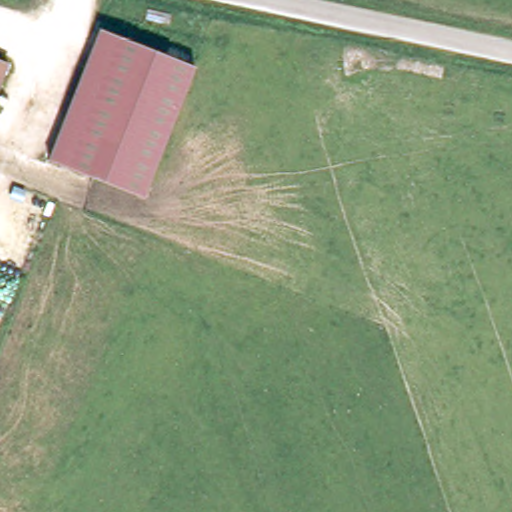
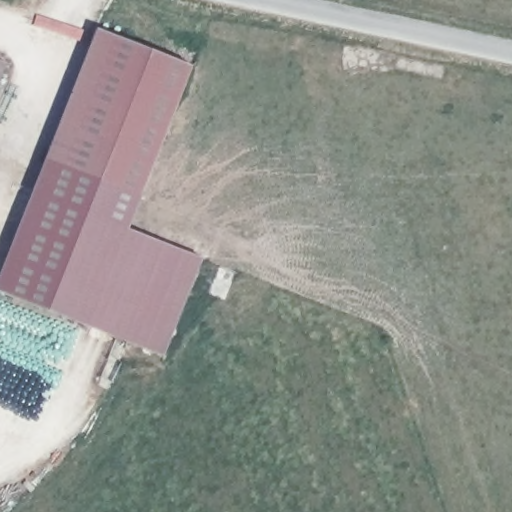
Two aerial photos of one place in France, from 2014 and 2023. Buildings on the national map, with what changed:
unchanged [(53,158),(102,26),(196,63),(146,195),(53,158)]
unchanged [(4,60),(0,70),(0,58),(4,60)]
new [(131,230),(205,259),(166,356),(0,290),(53,158),(146,195),(131,230)]

